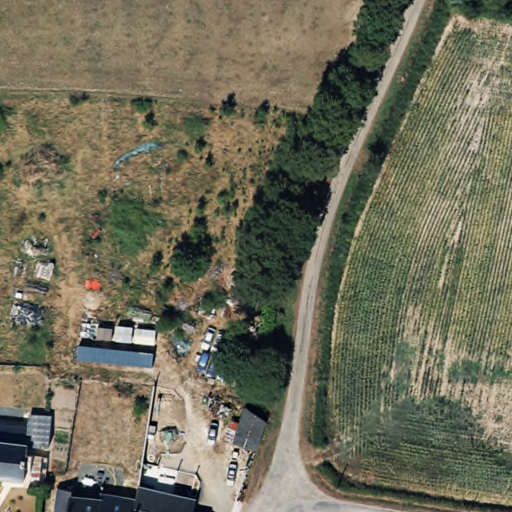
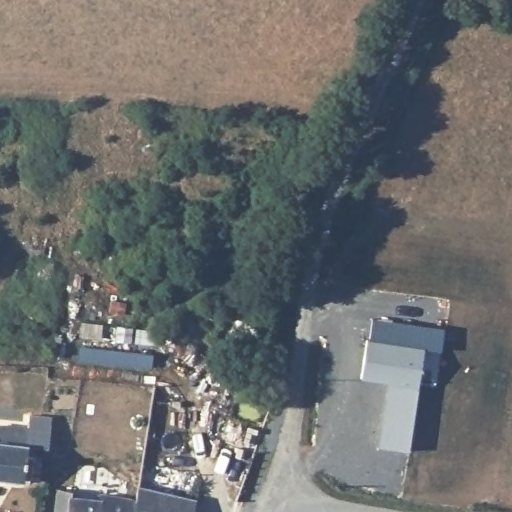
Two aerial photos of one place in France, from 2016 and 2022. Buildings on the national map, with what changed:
new [(423,347),(408,450),(378,445),(387,382),(360,378),(366,337),(369,337),(372,317),(444,328),(440,350),(423,347)]
demolished [(270,431),(256,457),(231,442),(239,429),(245,433),(250,426),(230,411),(235,405),(270,431)]
unchanged [(29,481),(18,481),(17,484),(0,483),(0,433),(24,435),(25,423),(49,425),(47,452),(31,451),(30,463),(38,463),(37,481),(29,481)]
unchanged [(150,465),(148,480),(133,479),(135,464),(150,465)]
unchanged [(187,512),(129,512),(130,498),(132,486),(188,496),(187,512)]
unchanged [(98,495),(130,498),(129,512),(56,512),(58,490),(62,491),(71,492),(70,497),(97,500),(98,495)]

